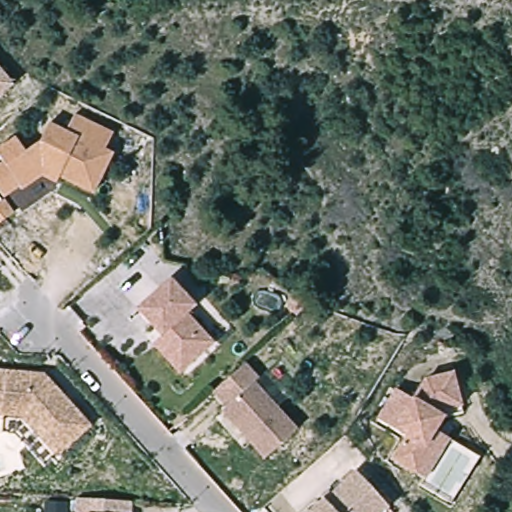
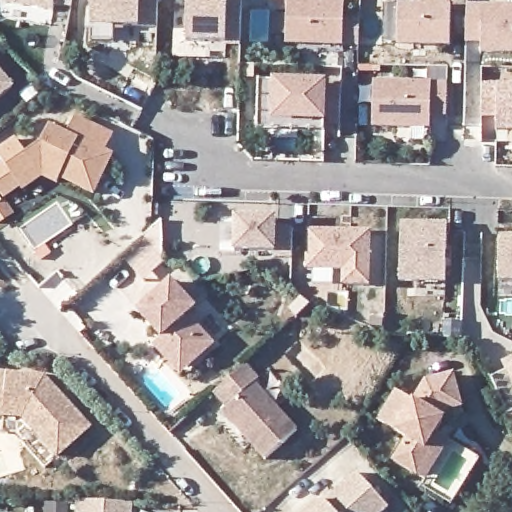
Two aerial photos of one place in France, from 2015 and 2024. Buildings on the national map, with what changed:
new [(0,0),(70,0),(69,7),(51,6),(50,10),(0,3),(0,0)]
new [(137,28),(91,27),(91,0),(156,0),(156,28),(137,28)]
new [(223,48),(223,43),(186,44),(187,0),(241,0),(239,48),(223,48)]
new [(344,13),(359,15),(359,47),(344,46),(344,47),(285,44),(286,11),(276,12),(276,0),(330,0),(344,1),(344,13)]
new [(394,4),(447,6),(446,47),(393,45),(394,4)]
new [(467,4),(512,5),(512,53),(481,52),(481,42),(466,42),(467,4)]
unchanged [(0,98),(0,72),(13,88),(0,98)]
new [(273,80),(329,82),(328,85),(341,87),(339,126),(328,124),(327,125),(322,125),(324,132),(256,130),(258,81),(273,80)]
new [(429,82),(429,128),(369,128),(371,81),(429,82)]
new [(447,117),(429,119),(429,82),(448,83),(447,117)]
new [(512,84),(512,133),(498,133),(498,119),(483,119),(484,84),(498,84),(512,84)]
unchanged [(40,142),(48,123),(65,131),(73,114),(112,132),(104,149),(111,152),(93,192),(60,176),(57,182),(43,175),(24,190),(21,187),(6,199),(0,191),(0,168),(4,165),(0,159),(0,150),(14,139),(25,153),(40,142)]
new [(277,217),(277,226),(292,229),(291,257),(276,255),(233,255),(233,217),(277,217)]
new [(446,281),(399,281),(401,222),(445,223),(446,281)]
new [(371,232),(371,287),(341,287),(341,272),(305,271),(306,230),(371,232)]
new [(499,235),(512,235),(512,282),(499,282),(500,242),(499,235)]
unchanged [(153,347),(161,340),(138,313),(171,283),(194,309),(186,317),(214,346),(188,368),(180,377),(153,347)]
new [(503,367),(502,365),(512,360),(512,412),(506,415),(489,377),(503,367)]
unchanged [(90,423),(58,452),(23,414),(0,413),(0,369),(44,372),(90,423)]
unchanged [(264,385),(259,388),(303,436),(271,465),(228,417),(232,413),(218,398),(250,370),(264,385)]
unchanged [(409,397),(421,377),(449,372),(456,403),(435,408),(433,412),(439,415),(422,444),(427,447),(413,471),(389,456),(403,434),(374,417),(393,387),(409,397)]
unchanged [(389,504),(380,512),(310,512),(326,497),(319,491),(326,483),(333,491),(358,469),(384,498),(389,504)]
unchanged [(75,500),(130,502),(130,512),(75,512),(75,500)]
unchanged [(65,512),(45,512),(45,502),(66,503),(65,512)]

